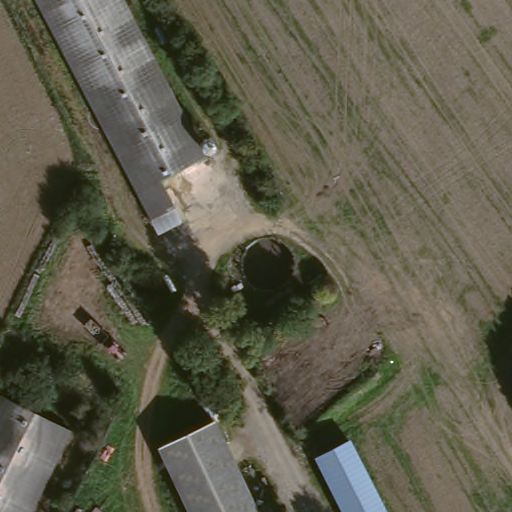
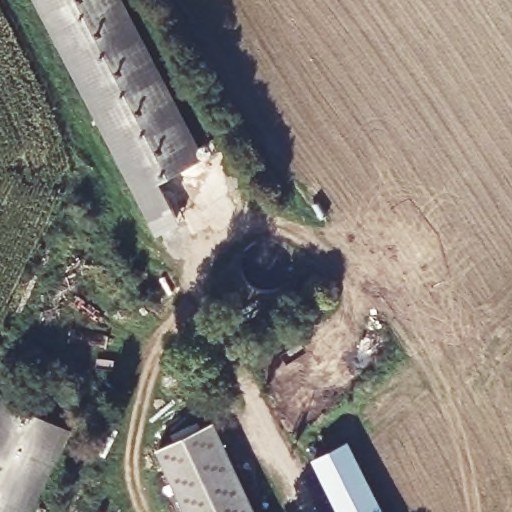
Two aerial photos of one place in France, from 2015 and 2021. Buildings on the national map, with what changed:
unchanged [(160,185),(172,213),(151,224),(38,0),(124,0),(206,163),(160,185)]
unchanged [(71,439),(34,512),(0,512),(0,404),(71,439)]
unchanged [(160,446),(218,419),(261,512),(190,512),(160,446)]
unchanged [(313,458),(350,440),(386,512),(341,512),(313,458)]

